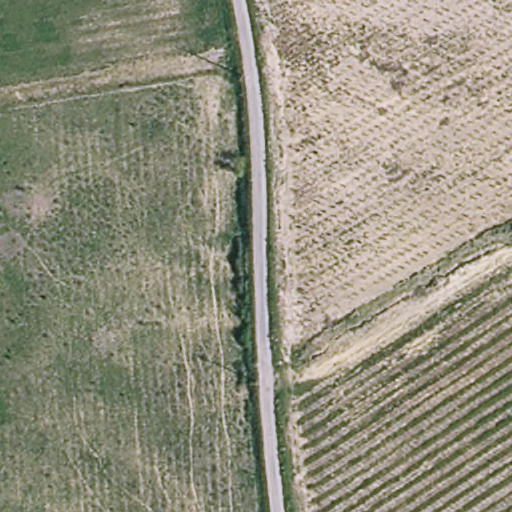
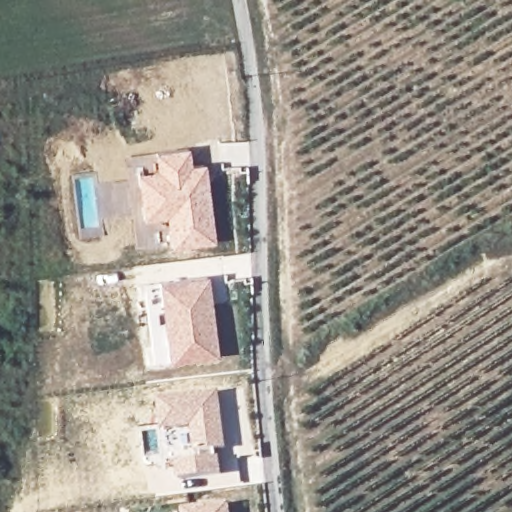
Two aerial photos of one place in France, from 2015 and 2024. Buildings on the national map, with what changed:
new [(143,220),(135,173),(158,171),(156,154),(188,150),(191,165),(204,164),(215,243),(170,249),(165,216),(143,220)]
new [(208,275),(217,359),(168,363),(157,283),(208,275)]
new [(199,460),(198,453),(194,453),(191,427),(163,432),(158,400),(219,391),(226,450),(216,451),(217,458),(220,458),(222,474),(179,481),(177,462),(199,460)]
new [(182,508),(230,502),(231,512),(183,512),(182,508)]

